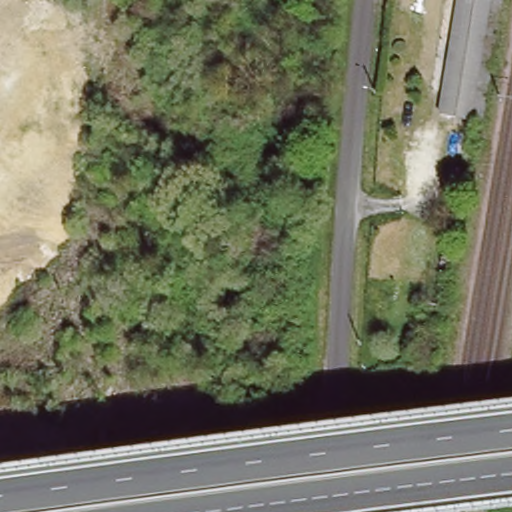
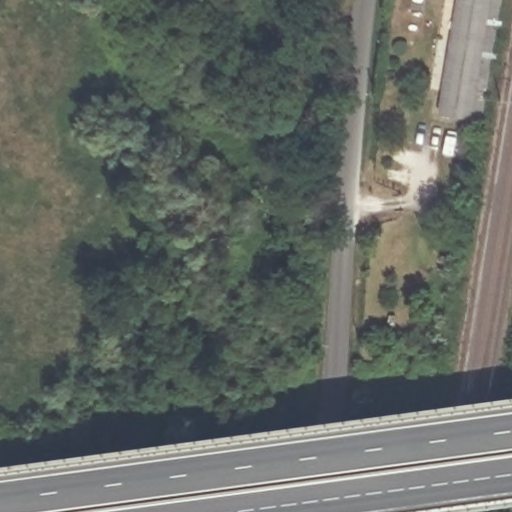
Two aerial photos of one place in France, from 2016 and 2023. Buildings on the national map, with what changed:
unchanged [(442,112),(462,0),(504,0),(482,120),(442,112)]

